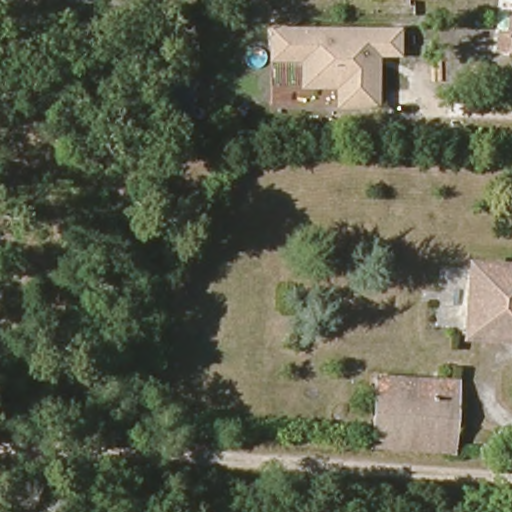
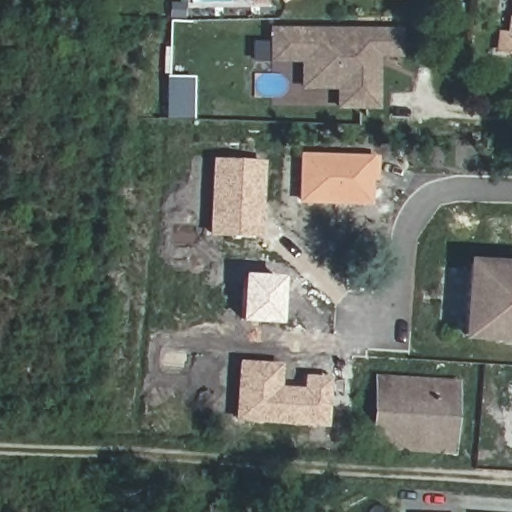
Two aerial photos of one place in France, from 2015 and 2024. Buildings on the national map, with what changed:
new [(281,0),(289,0),(283,4),(281,0)]
unchanged [(370,0),(417,0),(417,19),(371,18),(370,0)]
unchanged [(507,29),(512,30),(512,46),(506,45),(507,29)]
unchanged [(397,54),(376,54),(376,66),(376,106),(337,106),(337,86),(302,86),(302,59),(270,59),(271,30),(310,31),(328,31),(397,31),(397,54)]
new [(195,118),(166,117),(167,75),(196,76),(195,118)]
new [(377,155),(377,181),(372,181),(371,205),(297,204),(297,152),(377,155)]
new [(265,160),(262,237),(209,234),(211,158),(265,160)]
unchanged [(470,263),(512,265),(512,339),(465,336),(470,263)]
new [(280,324),(240,321),(242,274),(284,277),(280,324)]
new [(280,386),(302,388),(303,375),(331,376),(327,426),(234,421),(237,360),(282,363),(280,386)]
unchanged [(458,447),(378,442),(382,373),(463,376),(462,398),(460,425),(458,447)]

